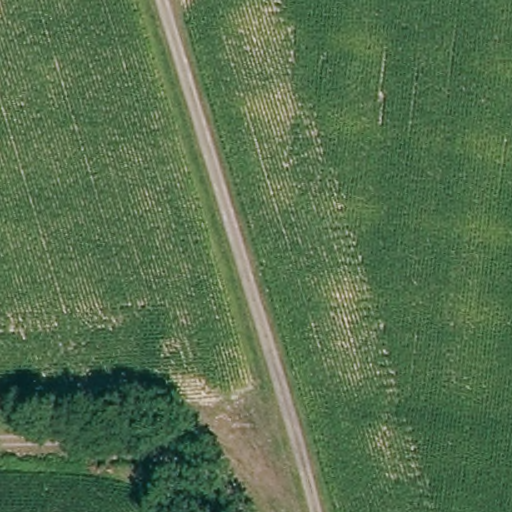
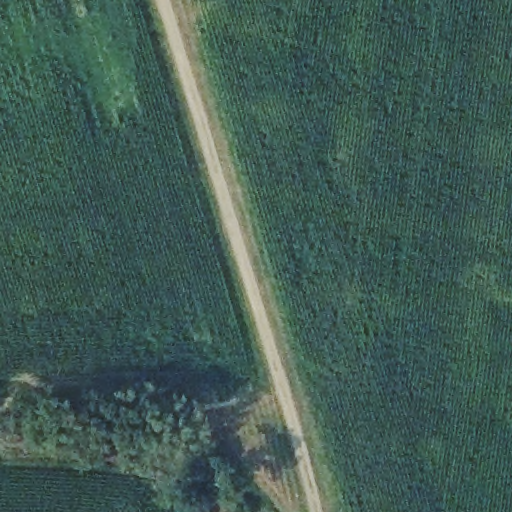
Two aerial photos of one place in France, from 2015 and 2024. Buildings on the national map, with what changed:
[]

